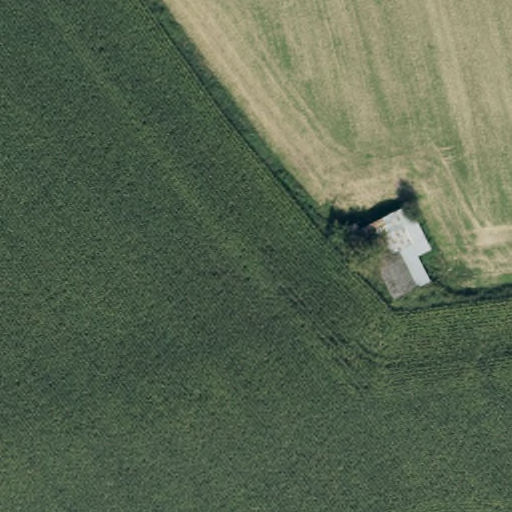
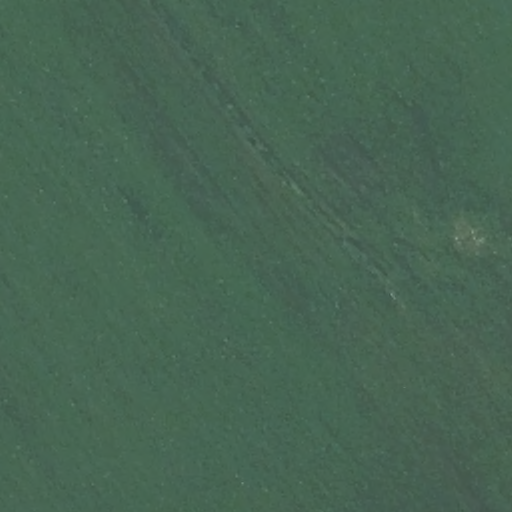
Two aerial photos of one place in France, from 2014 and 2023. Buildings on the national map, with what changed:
unchanged [(410,250),(423,290),(386,302),(376,259),(410,250)]

